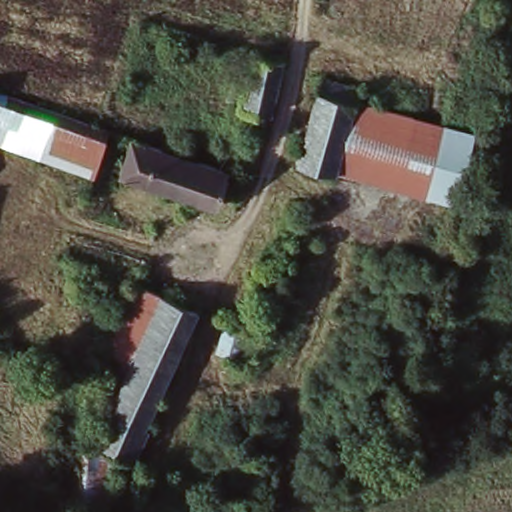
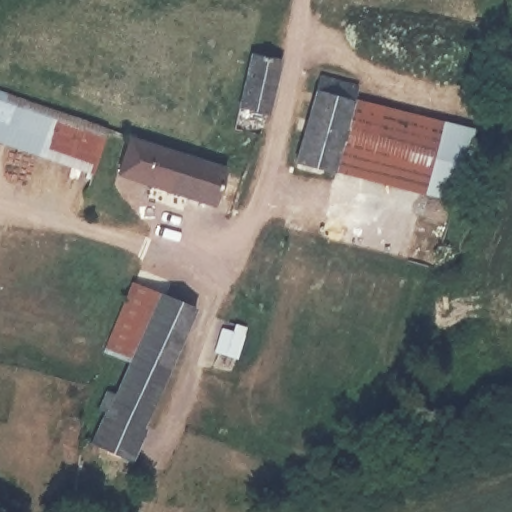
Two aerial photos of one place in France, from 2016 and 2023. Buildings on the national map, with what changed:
unchanged [(233,124),(240,107),(253,51),(283,58),(281,66),(271,112),(262,136),(233,124)]
unchanged [(335,171),(297,160),(321,74),(360,84),(356,97),(335,171)]
unchanged [(96,171),(0,138),(0,92),(108,132),(96,171)]
unchanged [(335,171),(356,97),(442,119),(423,194),(335,171)]
unchanged [(476,129),(458,202),(423,194),(442,119),(476,129)]
unchanged [(151,186),(105,170),(118,129),(165,145),(151,186)]
unchanged [(231,169),(217,209),(151,186),(165,145),(231,169)]
unchanged [(131,282),(198,308),(154,409),(110,390),(109,390),(92,382),(131,282)]
unchanged [(109,390),(110,390),(154,409),(146,429),(102,410),(110,390),(109,390)]
unchanged [(102,410),(146,429),(133,460),(88,444),(102,410)]

